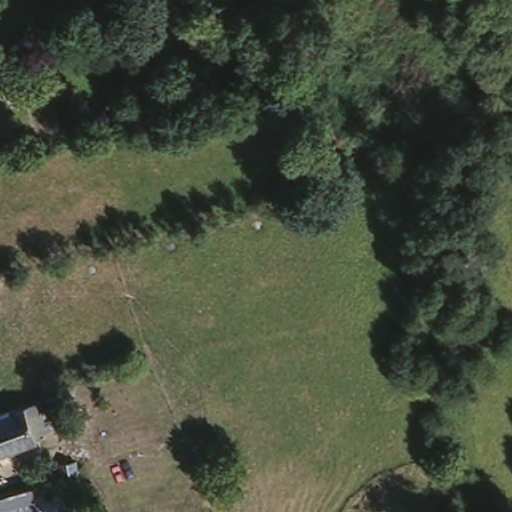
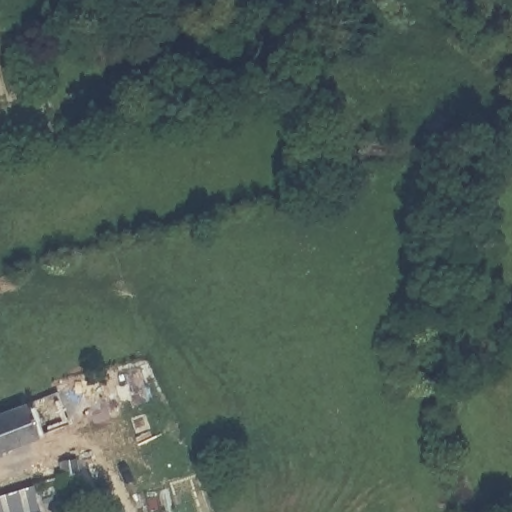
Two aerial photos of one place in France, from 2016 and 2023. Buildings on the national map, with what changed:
unchanged [(0,412),(25,402),(42,396),(50,421),(35,428),(38,436),(0,451),(0,412)]
unchanged [(76,459),(76,472),(57,475),(55,462),(76,459)]
unchanged [(37,512),(0,512),(0,499),(31,489),(37,512)]

